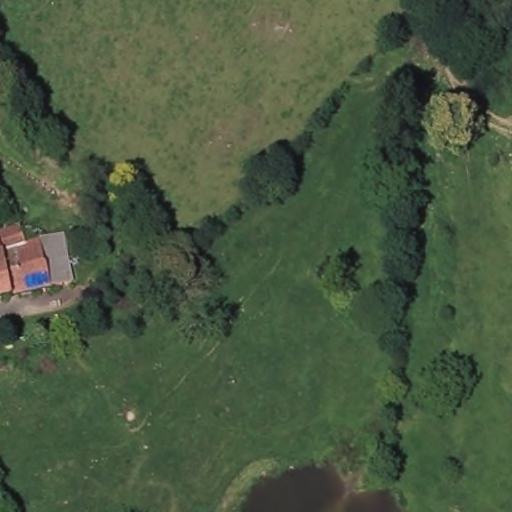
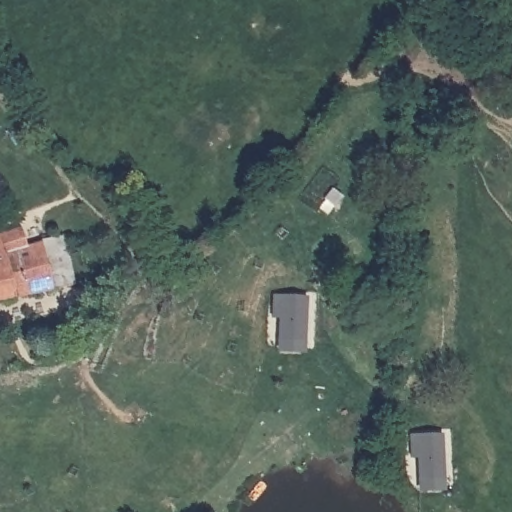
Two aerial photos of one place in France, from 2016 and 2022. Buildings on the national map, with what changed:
unchanged [(0,316),(0,247),(18,242),(23,258),(60,249),(72,301),(0,316)]
new [(278,351),(278,317),(272,316),(272,294),(307,296),(306,351),(278,351)]
new [(417,490),(416,457),(408,457),(407,432),(443,433),(445,489),(417,490)]

